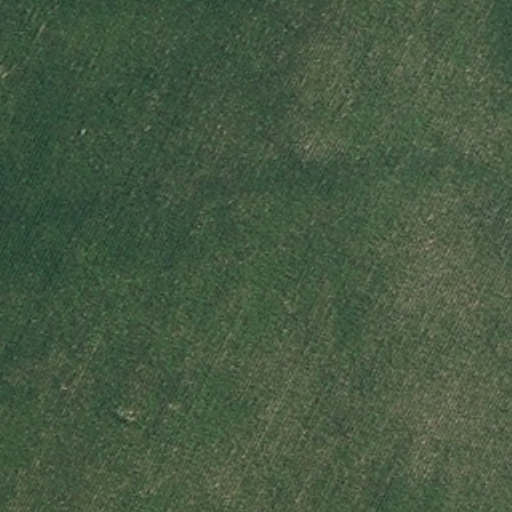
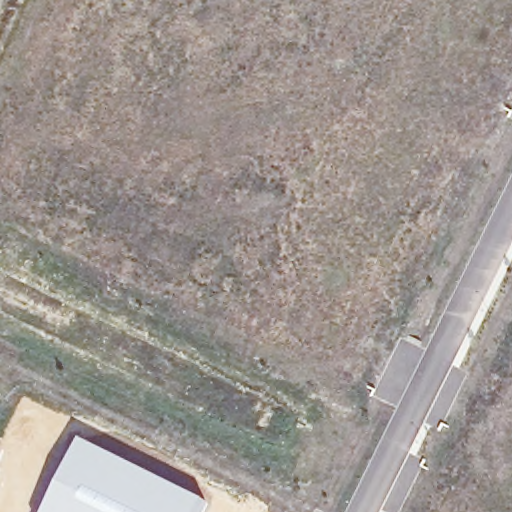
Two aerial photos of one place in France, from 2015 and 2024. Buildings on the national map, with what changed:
new [(80,438),(208,501),(202,512),(40,512),(50,496),(80,438)]

